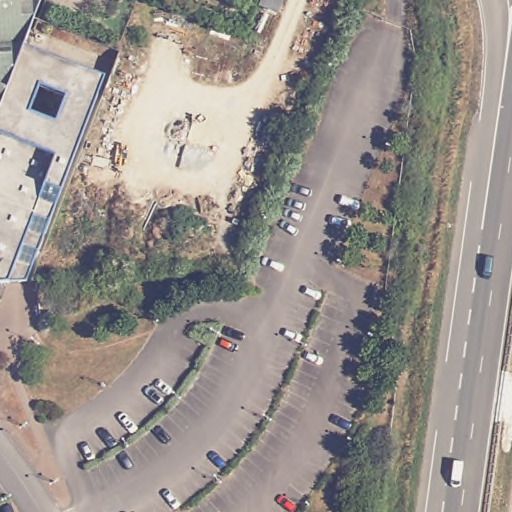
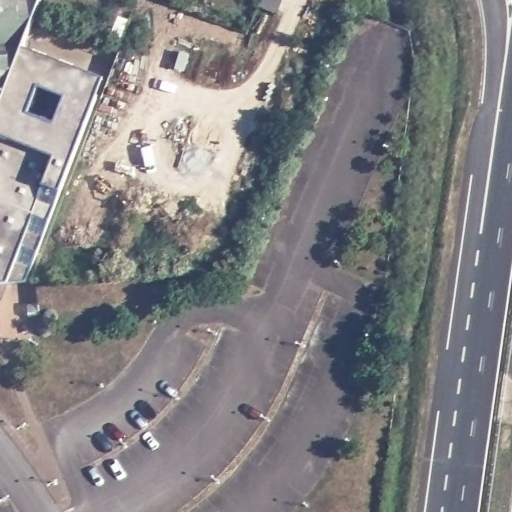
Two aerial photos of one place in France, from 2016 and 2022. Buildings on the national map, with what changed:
unchanged [(18,44),(24,47),(0,107),(0,0),(36,0),(18,44)]
unchanged [(0,283),(0,107),(24,47),(102,77),(105,79),(26,281),(21,281),(0,283)]

